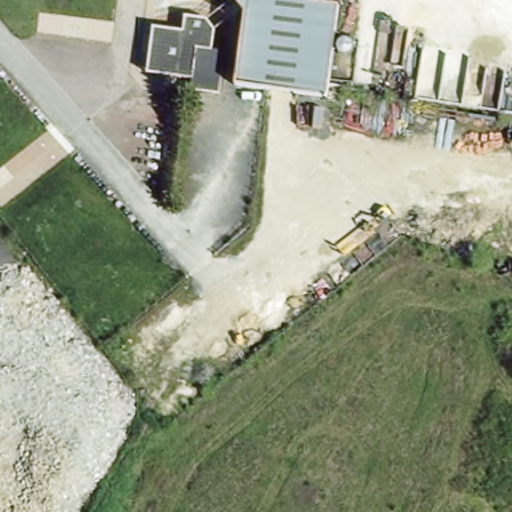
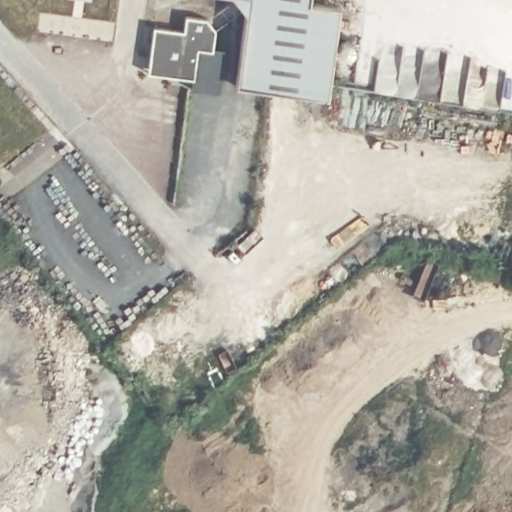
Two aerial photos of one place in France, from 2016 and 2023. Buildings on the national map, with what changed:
unchanged [(307,1),(338,5),(326,94),(238,81),(248,7),(241,0),(308,0),(307,1)]
unchanged [(151,61),(155,26),(191,30),(193,11),(217,14),(213,51),(197,49),(194,79),(162,75),(150,74),(151,61)]

